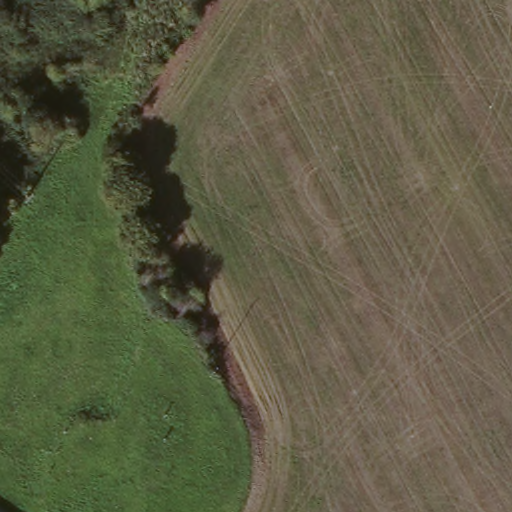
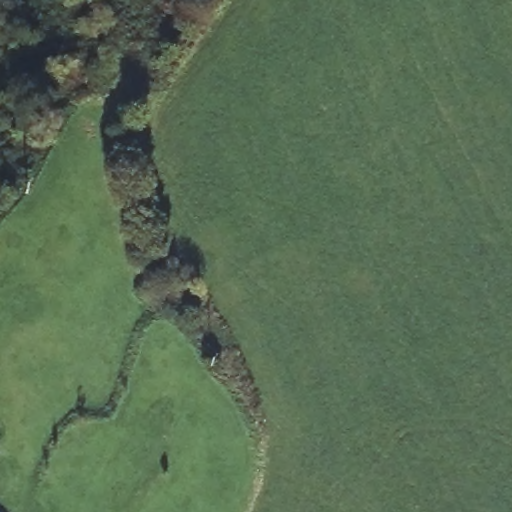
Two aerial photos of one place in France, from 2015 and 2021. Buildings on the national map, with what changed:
[]

